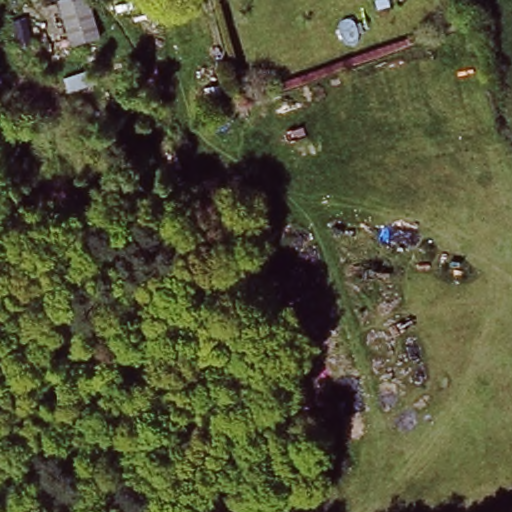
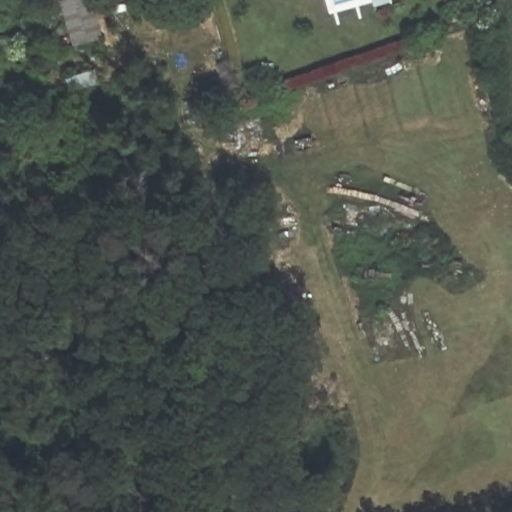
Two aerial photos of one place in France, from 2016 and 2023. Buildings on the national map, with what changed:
unchanged [(57,0),(84,0),(92,33),(67,40),(57,0)]

